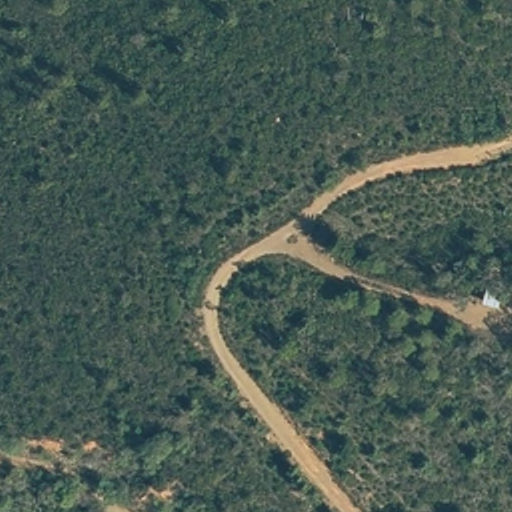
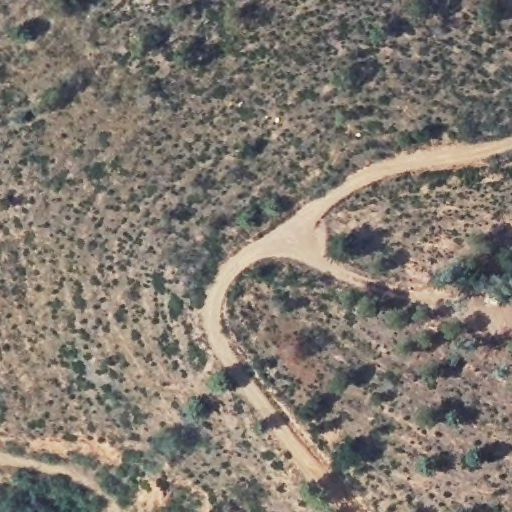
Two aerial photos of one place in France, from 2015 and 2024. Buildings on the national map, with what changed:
unchanged [(478,304),(485,279),(505,285),(498,309),(478,304)]

